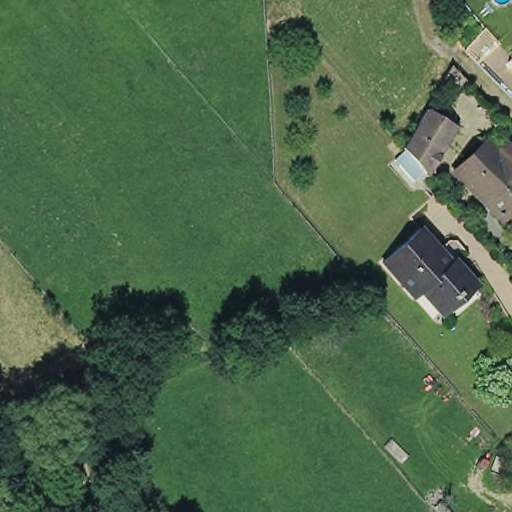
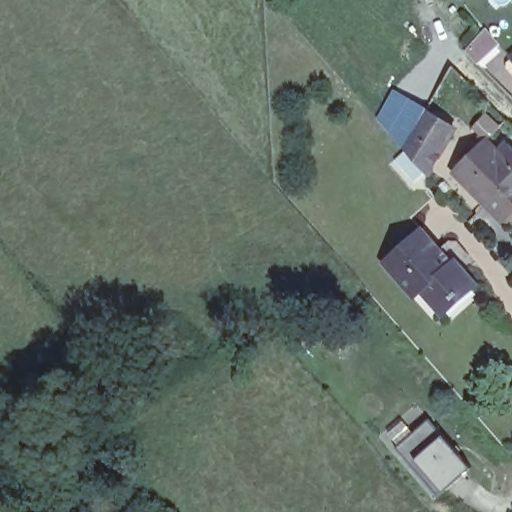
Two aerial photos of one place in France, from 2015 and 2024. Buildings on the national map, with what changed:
unchanged [(509,65),(512,62),(512,73),(509,69),(509,65)]
unchanged [(396,154),(406,144),(405,143),(428,103),(453,125),(427,167),(425,165),(414,175),(396,154)]
unchanged [(457,176),(487,145),(499,157),(509,147),(512,150),(512,214),(503,223),(457,176)]
unchanged [(481,288),(453,314),(447,307),(444,303),(433,313),(414,292),(384,256),(423,222),(441,243),(450,234),(458,235),(469,248),(459,257),(473,272),(469,275),(476,282),(481,288)]
new [(443,491),(389,433),(404,421),(414,433),(430,419),(471,467),(443,491)]

